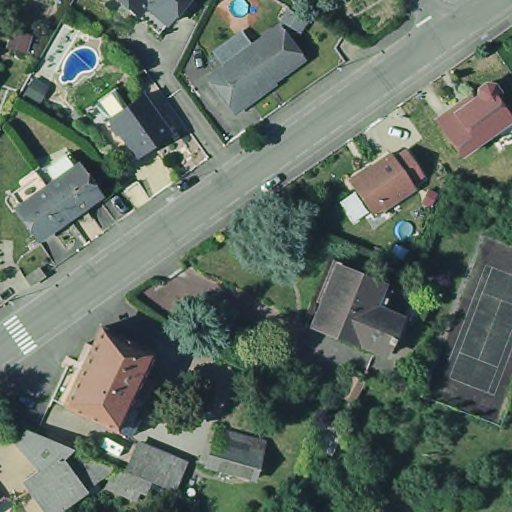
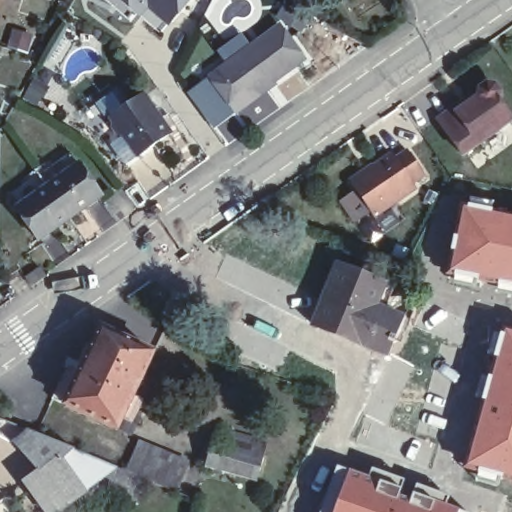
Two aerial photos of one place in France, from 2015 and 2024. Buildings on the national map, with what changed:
unchanged [(134,11),(125,0),(147,0),(134,11)]
unchanged [(148,0),(189,0),(167,21),(148,0)]
unchanged [(212,75),(281,20),(307,58),(238,111),(212,75)]
unchanged [(22,55),(3,49),(7,38),(25,43),(22,55)]
unchanged [(470,96),(472,100),(477,97),(479,89),(481,87),(485,85),(493,86),(496,93),(495,101),(510,120),(506,122),(460,155),(436,120),(452,108),(470,96)]
unchanged [(136,158),(110,118),(145,93),(170,132),(136,158)]
unchanged [(426,172),(414,180),(417,185),(377,213),(354,178),(395,149),(398,154),(410,146),(426,172)]
unchanged [(108,188),(40,238),(16,206),(86,157),(108,188)]
new [(512,287),(448,274),(461,204),(512,214),(512,287)]
unchanged [(386,351),(367,343),(360,340),(315,321),(319,310),(338,263),(386,283),(394,287),(382,312),(383,313),(400,320),(386,351)]
new [(512,483),(463,468),(502,328),(512,331),(512,483)]
unchanged [(113,430),(63,406),(51,400),(66,368),(72,371),(85,344),(90,347),(98,330),(151,354),(140,376),(153,382),(140,409),(138,408),(130,424),(119,418),(113,430)]
unchanged [(336,399),(321,391),(333,368),(347,376),(336,399)]
unchanged [(113,468),(52,512),(48,512),(20,481),(37,466),(18,440),(39,426),(113,468)]
unchanged [(222,465),(211,461),(205,460),(210,438),(217,440),(221,426),(271,439),(266,454),(260,475),(222,465)]
unchanged [(139,446),(185,466),(175,489),(128,469),(139,446)]
new [(329,512),(341,474),(454,512),(329,512)]

